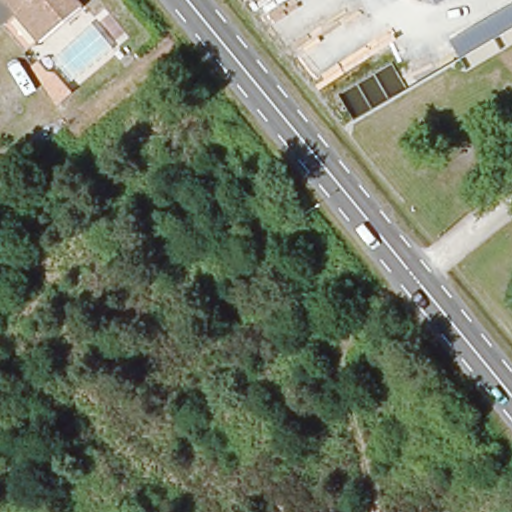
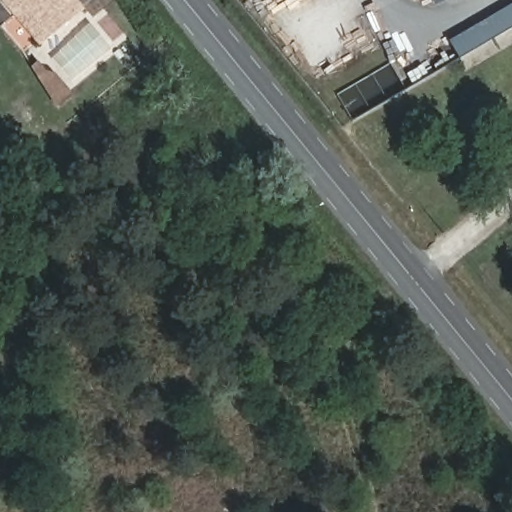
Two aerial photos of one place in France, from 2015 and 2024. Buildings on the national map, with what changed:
unchanged [(81,0),(83,2),(51,27),(42,34),(16,0),(81,0)]
unchanged [(436,0),(445,0),(436,5),(436,0)]

